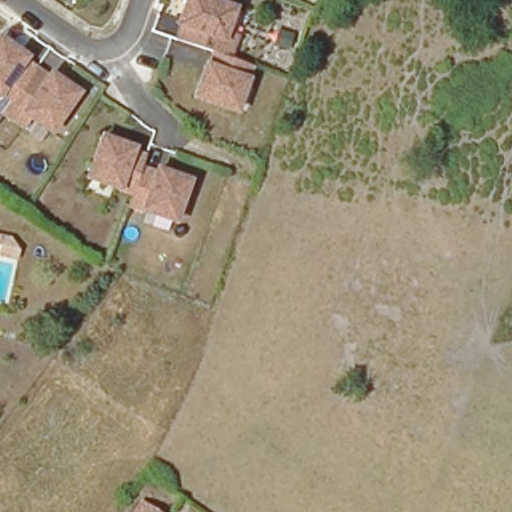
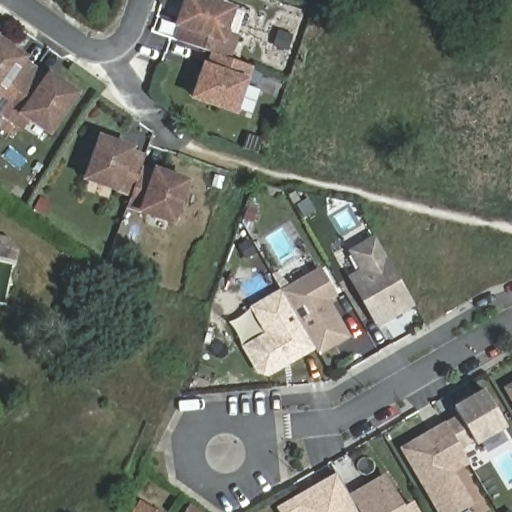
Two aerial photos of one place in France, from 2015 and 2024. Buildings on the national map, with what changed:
unchanged [(182,29),(178,28),(188,0),(199,0),(235,12),(226,36),(237,40),(230,61),(216,57),(215,56),(177,43),(182,29)]
unchanged [(275,29),(289,34),(284,48),(270,43),(275,29)]
unchanged [(0,108),(0,42),(2,38),(30,57),(27,61),(40,69),(24,92),(9,114),(0,108)]
unchanged [(216,57),(230,61),(251,69),(236,114),(195,100),(206,69),(210,70),(215,56),(216,57)]
unchanged [(24,92),(40,69),(52,78),(55,74),(81,93),(55,132),(34,117),(27,127),(9,114),(24,92)]
unchanged [(141,169),(140,172),(131,194),(86,178),(101,138),(132,149),(130,152),(145,157),(141,169)]
unchanged [(155,174),(156,170),(187,181),(173,222),(127,205),(131,194),(140,172),(141,169),(155,174)]
new [(377,329),(348,275),(360,269),(348,249),(375,235),(417,308),(377,329)]
new [(330,302),(350,337),(320,353),(318,349),(268,376),(255,373),(242,346),(265,333),(250,306),(323,267),(338,297),(330,302)]
new [(512,383),(512,401),(505,387),(512,383)]
new [(507,429),(475,446),(473,442),(461,449),(469,464),(457,471),(475,504),(461,512),(438,512),(402,446),(458,412),(454,405),(485,388),(507,429)]
new [(276,506),(336,473),(348,492),(385,472),(404,506),(413,501),(419,512),(279,512),(276,506)]
unchanged [(141,503),(156,512),(135,512),(141,503)]
new [(191,505),(202,512),(187,512),(191,505)]

